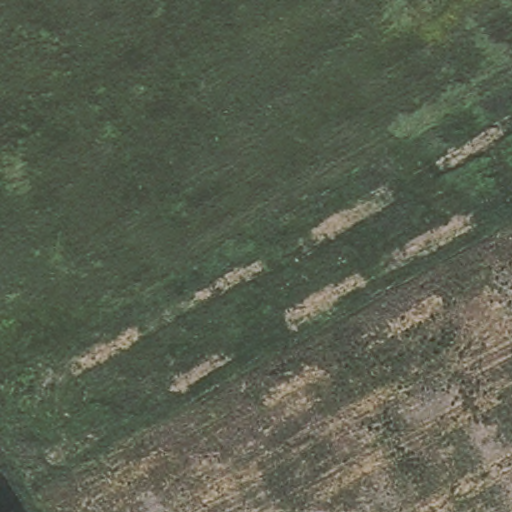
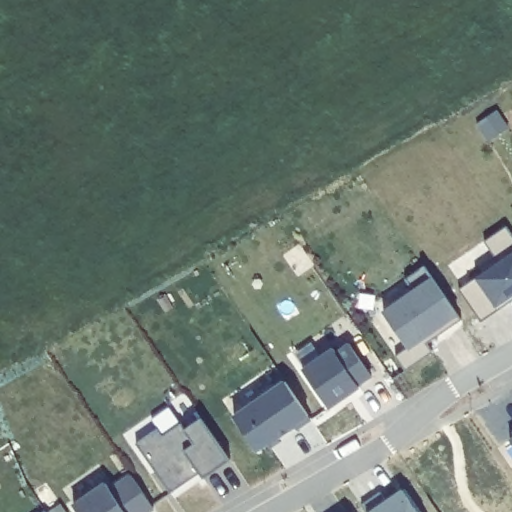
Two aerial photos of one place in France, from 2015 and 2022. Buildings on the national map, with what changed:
new [(496,111),(508,128),(488,141),(477,124),(496,111)]
new [(458,289),(474,279),(498,261),(485,242),(505,227),(512,236),(512,301),(482,320),(458,289)]
new [(417,294),(408,281),(427,268),(465,322),(430,346),(437,354),(409,373),(398,358),(411,349),(387,314),(417,294)]
new [(337,350),(340,354),(352,346),(375,379),(362,388),(363,389),(333,411),(305,371),(337,350)]
new [(274,448),(272,445),(272,444),(260,452),(237,419),(288,384),(315,421),(299,431),(297,428),(280,439),(282,442),(274,448)]
new [(139,446),(161,431),(166,438),(184,426),(188,432),(204,420),(233,462),(207,481),(203,476),(173,496),(162,479),(158,474),(139,446)]
new [(77,509),(109,486),(113,492),(134,478),(157,511),(155,512),(79,512),(77,509)]
new [(390,503),(395,499),(405,492),(419,512),(368,512),(365,508),(383,494),(390,503)]

